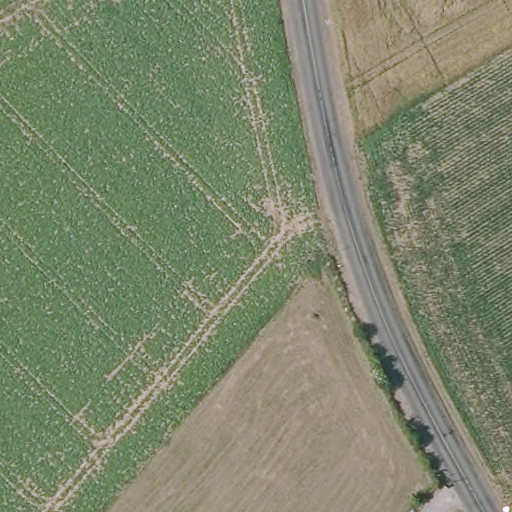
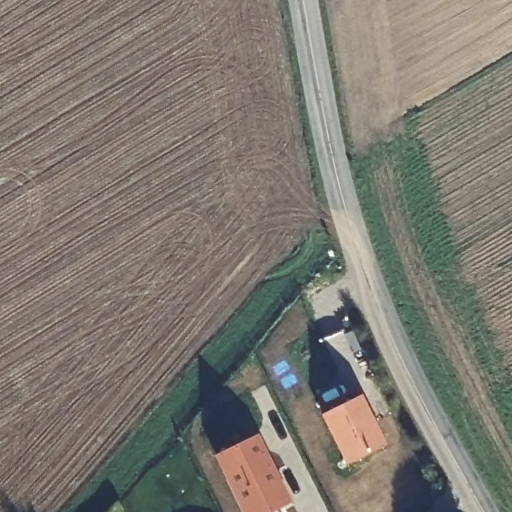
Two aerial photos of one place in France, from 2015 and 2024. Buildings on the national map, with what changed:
new [(362,393),(387,445),(347,466),(322,414),(362,393)]
new [(259,434),(291,502),(273,512),(243,512),(215,456),(259,434)]

